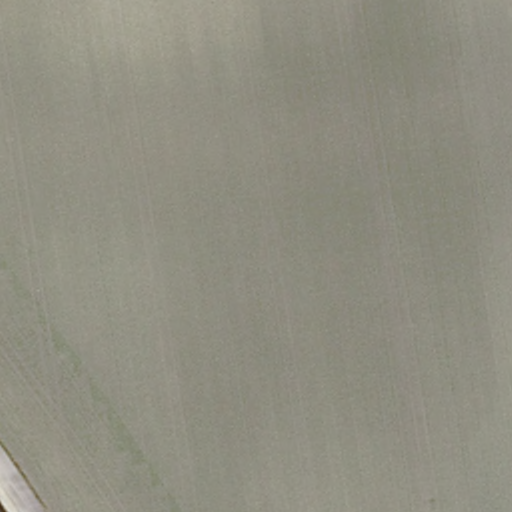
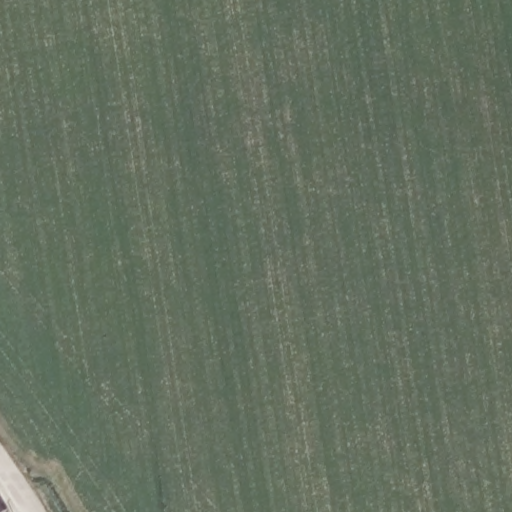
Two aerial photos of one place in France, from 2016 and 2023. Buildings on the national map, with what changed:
unchanged [(7,512),(0,512),(0,501),(7,512)]

